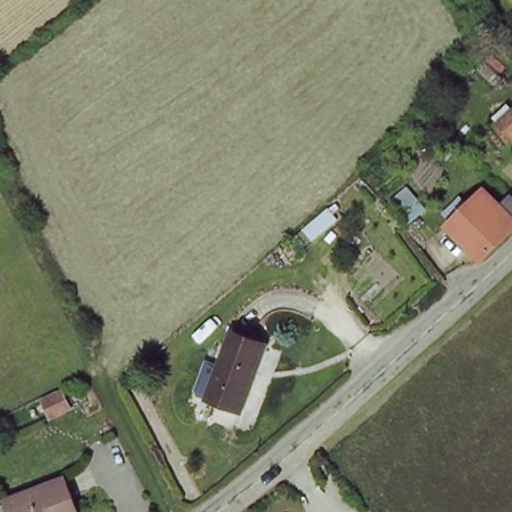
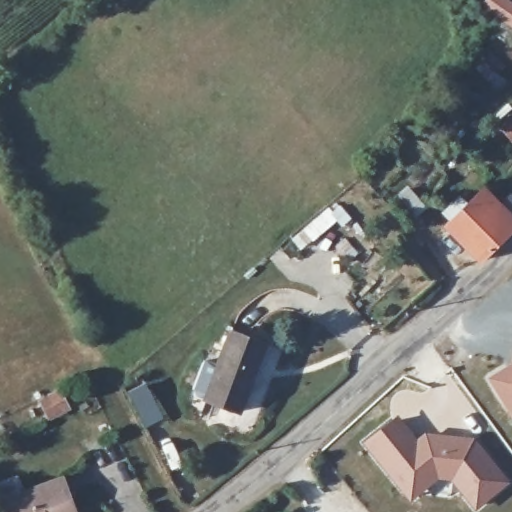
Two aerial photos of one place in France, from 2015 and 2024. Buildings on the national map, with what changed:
unchanged [(498,113),(512,127),(512,133),(501,145),(483,129),(498,113)]
unchanged [(449,232),(486,198),(499,211),(510,201),(512,204),(512,232),(477,266),(449,232)]
unchanged [(263,348),(240,411),(204,400),(228,336),(263,348)]
new [(511,418),(487,378),(512,361),(512,417),(511,418)]
unchanged [(70,415),(53,421),(46,402),(63,395),(70,415)]
new [(398,416),(419,439),(426,433),(473,438),(511,483),(476,510),(451,481),(438,479),(411,499),(364,444),(398,416)]
unchanged [(63,480),(75,512),(6,512),(3,503),(63,480)]

